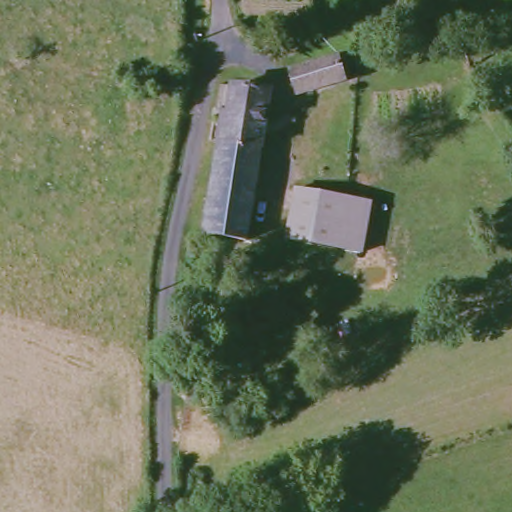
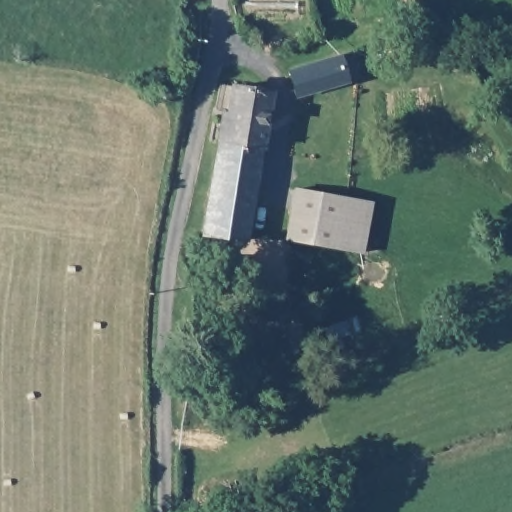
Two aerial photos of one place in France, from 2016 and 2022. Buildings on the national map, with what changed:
unchanged [(325,71),(340,69),(337,59),(350,56),(352,71),(341,74),(343,83),(335,85),(295,96),(288,72),(323,64),(325,71)]
unchanged [(235,84),(272,89),(265,141),(230,135),(235,84)]
unchanged [(265,141),(253,236),(211,230),(225,134),(230,135),(265,141)]
unchanged [(320,244),(292,240),(301,190),(328,194),(320,244)]
unchanged [(328,194),(375,200),(369,250),(320,244),(328,194)]
unchanged [(220,257),(240,259),(240,263),(238,278),(217,275),(220,257)]

